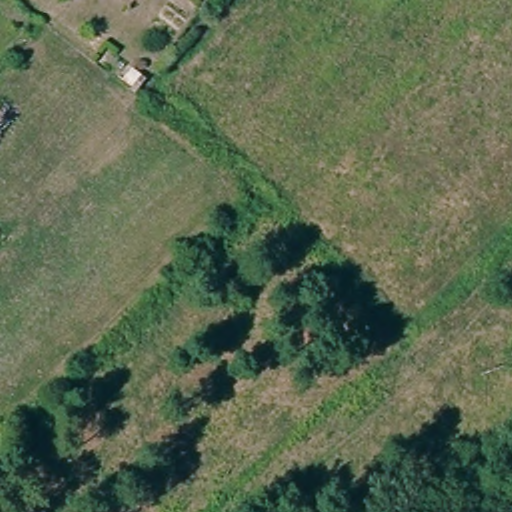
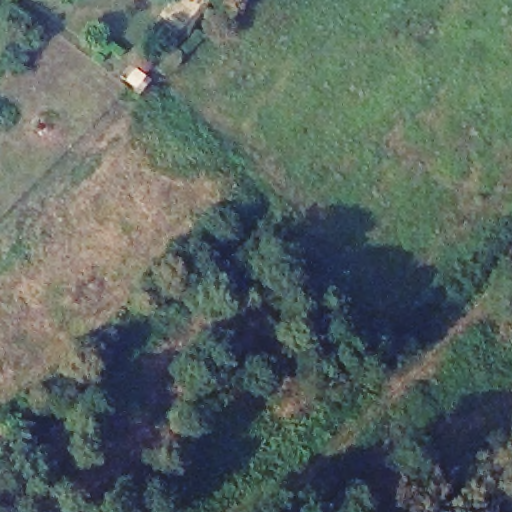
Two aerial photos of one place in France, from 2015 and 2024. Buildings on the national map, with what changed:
[]

